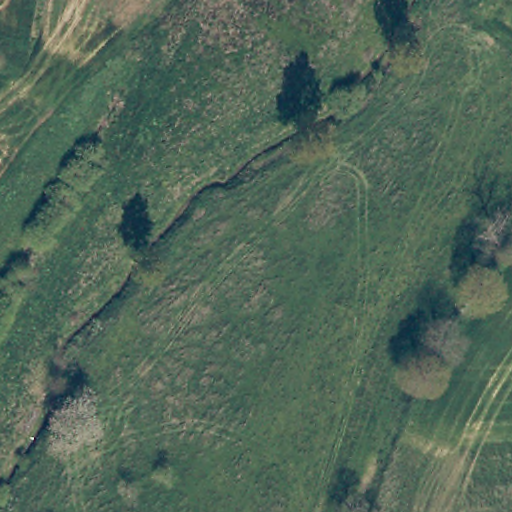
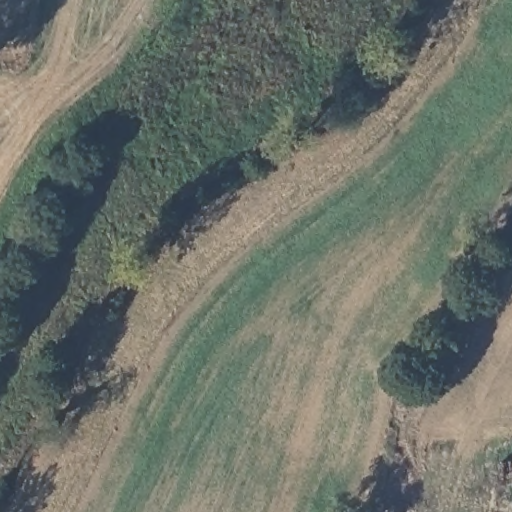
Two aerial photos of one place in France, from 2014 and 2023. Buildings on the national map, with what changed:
[]

